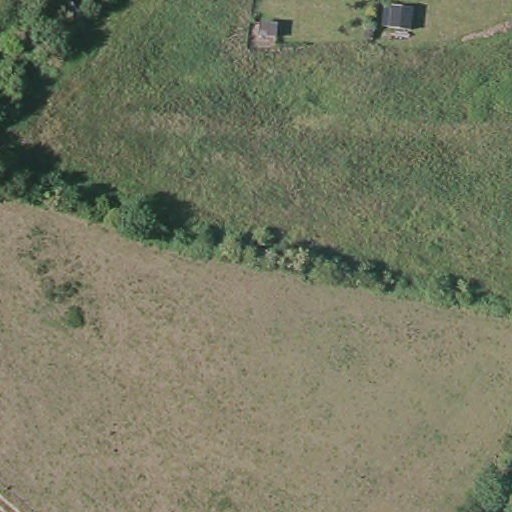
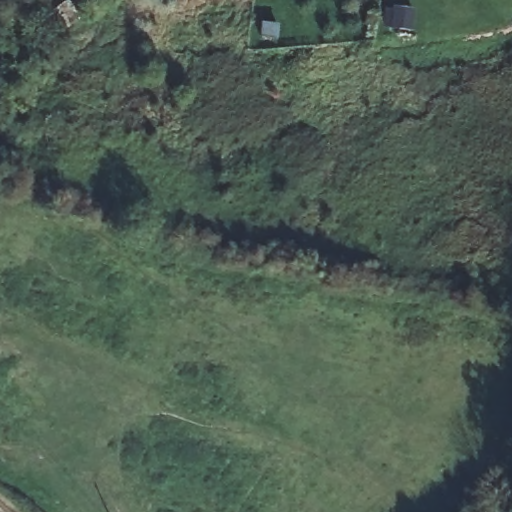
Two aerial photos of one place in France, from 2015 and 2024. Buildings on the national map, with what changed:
unchanged [(65,6),(82,24),(62,42),(55,49),(41,27),(65,6)]

